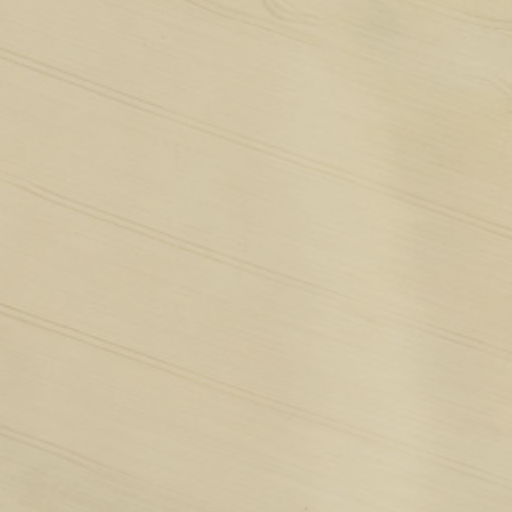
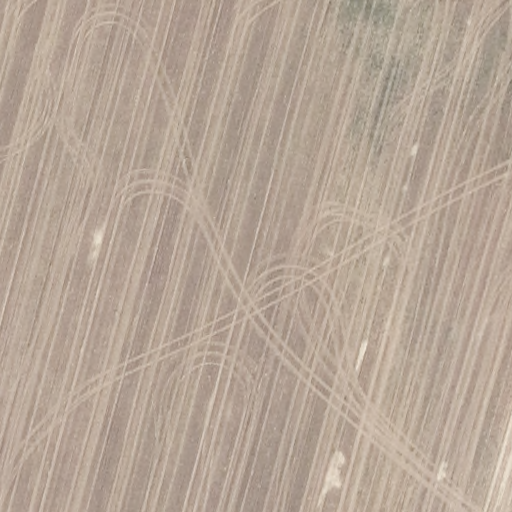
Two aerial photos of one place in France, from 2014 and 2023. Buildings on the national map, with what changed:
[]

